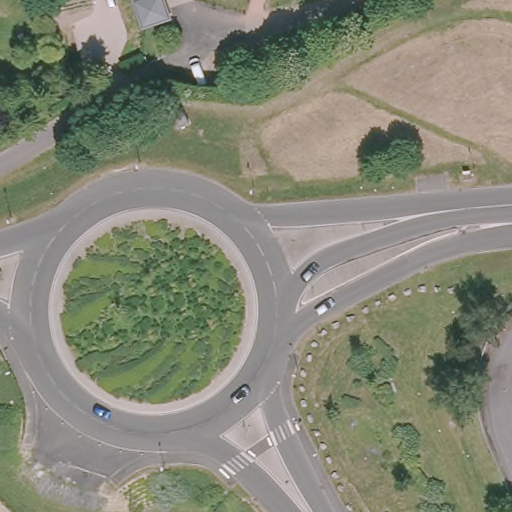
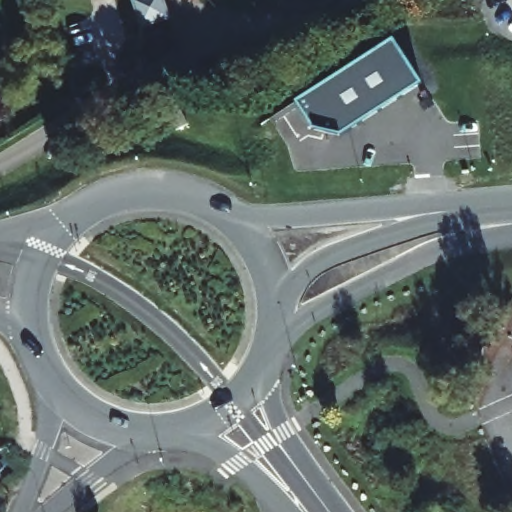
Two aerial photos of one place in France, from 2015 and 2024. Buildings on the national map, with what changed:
unchanged [(143,26),(136,1),(138,0),(164,0),(169,19),(143,26)]
new [(314,130),(296,103),(394,41),(422,85),(339,137),(314,130)]

